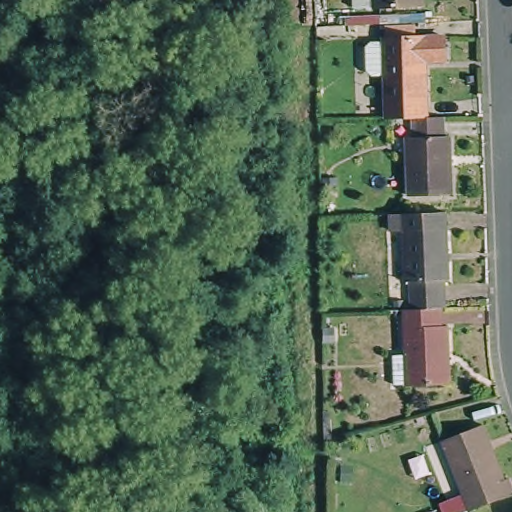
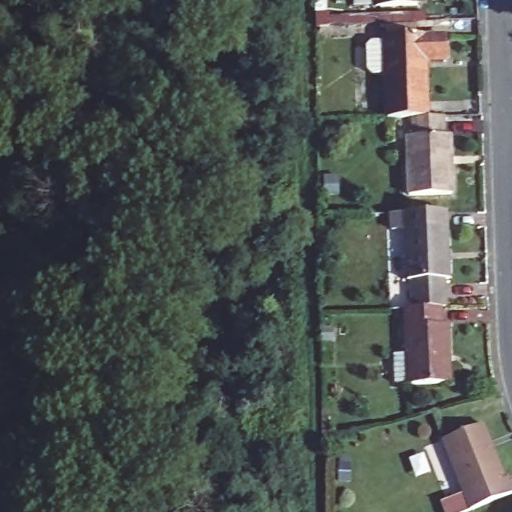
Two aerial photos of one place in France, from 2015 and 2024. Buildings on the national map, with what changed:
unchanged [(415,4),(375,3),(375,0),(415,0),(415,4)]
unchanged [(455,29),(455,57),(430,57),(432,109),(454,109),(455,197),(412,197),(410,123),(387,119),(390,31),(455,29)]
unchanged [(390,225),(390,210),(447,209),(454,209),(455,279),(445,279),(445,308),(444,308),(442,308),(407,308),(406,225),(390,225)]
unchanged [(442,325),(448,325),(449,363),(443,363),(443,384),(397,384),(397,351),(407,351),(407,308),(442,308),(442,325)]
unchanged [(445,435),(487,418),(510,474),(512,474),(512,491),(494,499),(477,506),(445,435)]

